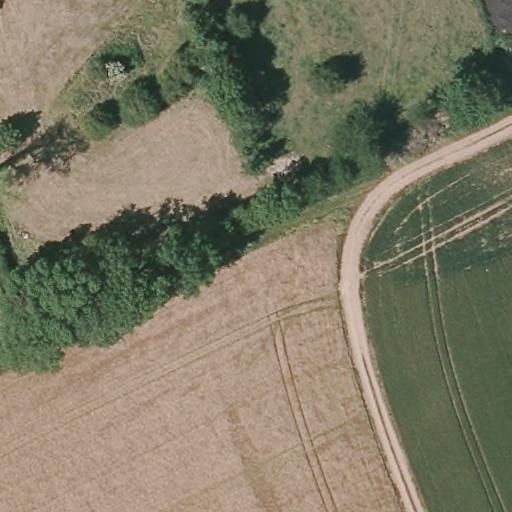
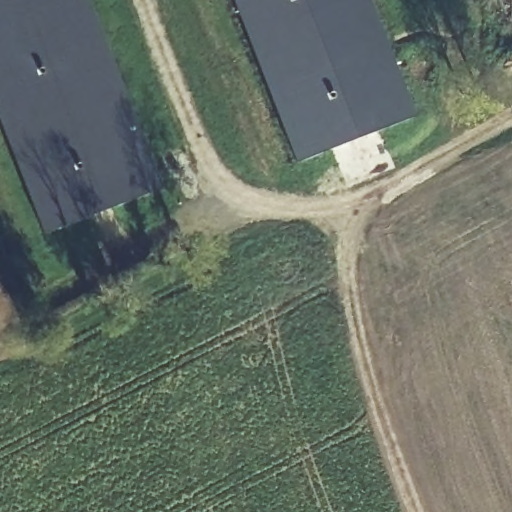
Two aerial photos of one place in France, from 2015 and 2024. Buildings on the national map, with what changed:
new [(41,232),(0,127),(0,0),(86,0),(159,187),(41,232)]
new [(232,0),(369,0),(414,117),(296,163),(232,0)]

